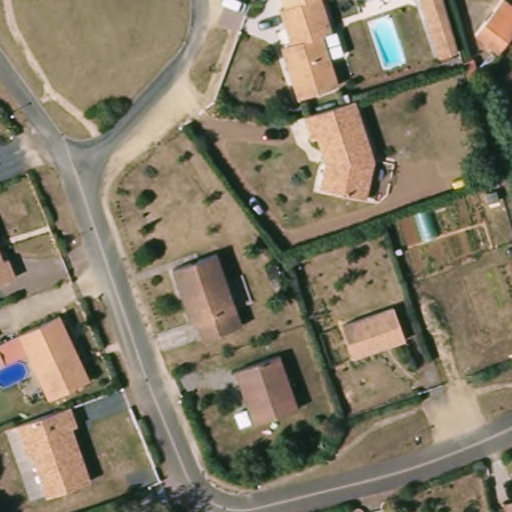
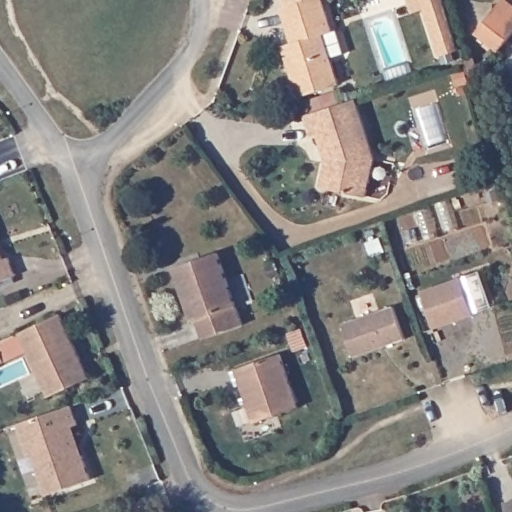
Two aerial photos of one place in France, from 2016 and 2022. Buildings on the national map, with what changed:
unchanged [(293,0),(324,0),(333,27),(323,30),(339,80),(299,93),(284,47),(292,40),(281,4),(293,0)]
unchanged [(423,0),(446,0),(460,49),(441,57),(423,0)]
unchanged [(512,38),(505,48),(479,32),(503,0),(512,0),(512,38)]
unchanged [(376,155),(369,192),(323,185),(328,159),(319,132),(313,134),(306,112),(357,95),(376,155)]
unchanged [(0,280),(0,242),(13,274),(0,280)]
unchanged [(217,248),(243,321),(204,335),(197,316),(192,318),(173,264),(217,248)]
new [(465,275),(477,313),(437,326),(424,288),(465,275)]
unchanged [(408,336),(356,353),(345,321),(397,303),(408,336)]
unchanged [(89,374),(48,393),(19,328),(60,310),(89,374)]
unchanged [(29,350),(0,364),(0,338),(19,328),(29,350)]
unchanged [(281,352),(299,405),(254,420),(236,367),(281,352)]
unchanged [(45,492),(31,455),(28,456),(18,425),(70,405),(77,427),(70,428),(90,480),(45,492)]
unchanged [(512,502),(512,512),(506,512),(505,503),(512,502)]

